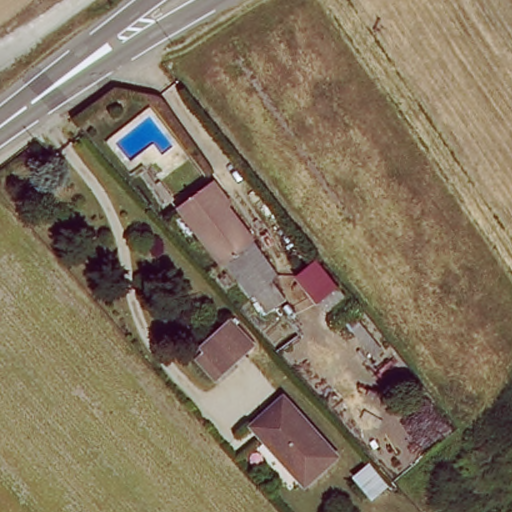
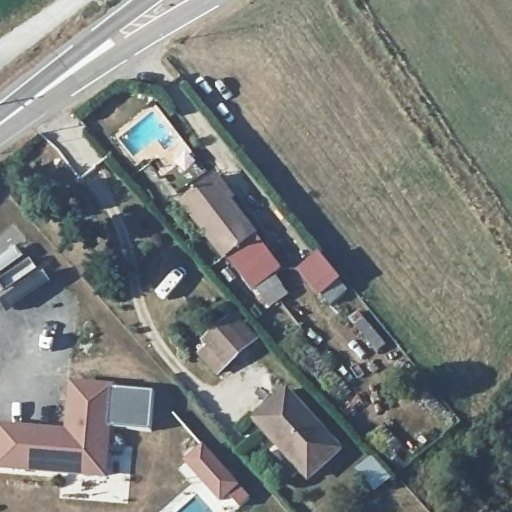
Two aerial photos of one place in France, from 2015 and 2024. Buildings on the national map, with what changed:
unchanged [(283,277),(258,295),(250,285),(246,279),(242,281),(183,207),(210,186),(274,266),(283,277)]
unchanged [(305,274),(324,260),(345,288),(328,301),(305,274)]
unchanged [(203,345),(225,327),(232,322),(257,351),(250,356),(227,375),(203,345)]
new [(70,384),(116,388),(107,481),(0,472),(0,426),(66,432),(70,384)]
unchanged [(306,484),(253,423),(263,415),(285,395),(339,454),(316,475),(306,484)]
new [(203,444),(242,486),(220,504),(183,462),(203,444)]

